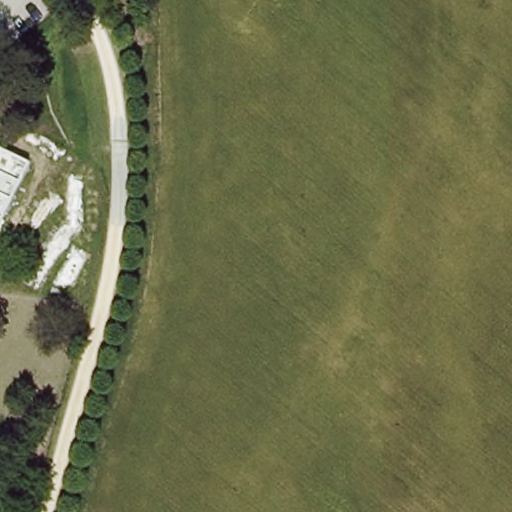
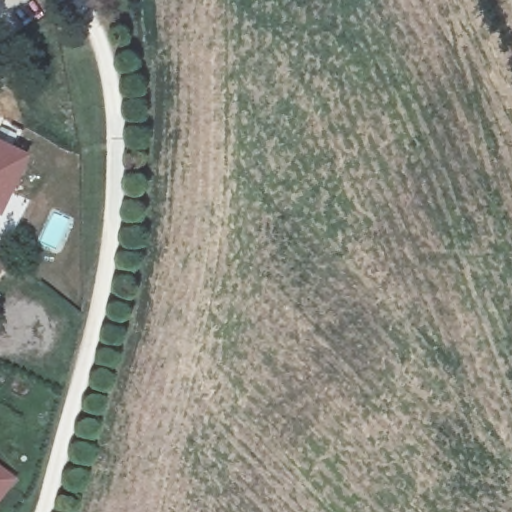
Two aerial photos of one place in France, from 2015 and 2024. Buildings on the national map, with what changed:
new [(27,160),(0,214),(0,146),(27,160)]
new [(20,482),(0,507),(0,467),(20,482)]

